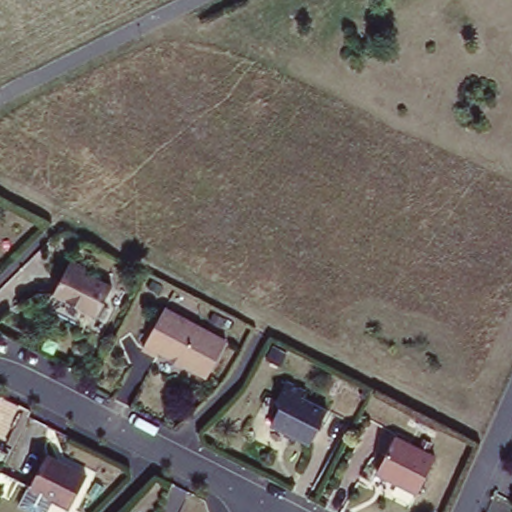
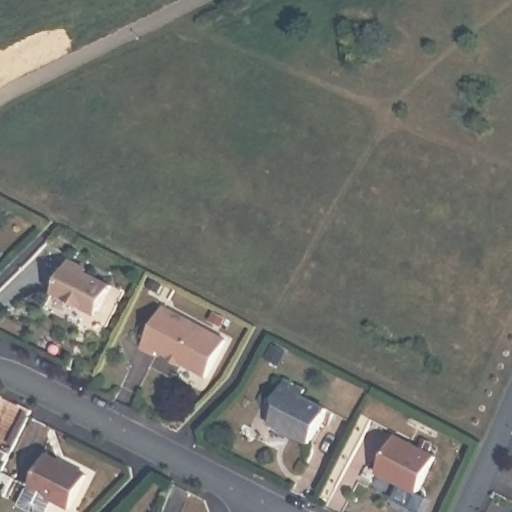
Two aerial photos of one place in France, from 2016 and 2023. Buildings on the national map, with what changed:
unchanged [(83,305),(53,289),(71,257),(88,265),(86,269),(112,282),(99,307),(96,312),(83,305)]
unchanged [(226,341),(206,378),(159,352),(156,356),(142,348),(164,309),(226,341)]
unchanged [(307,391),(303,398),(328,410),(309,445),(271,425),(279,406),(276,399),(287,380),(307,391)]
unchanged [(435,453),(417,489),(376,468),(395,432),(435,453)]
unchanged [(92,471),(74,504),(55,495),(46,512),(24,500),(33,483),(51,450),(92,471)]

